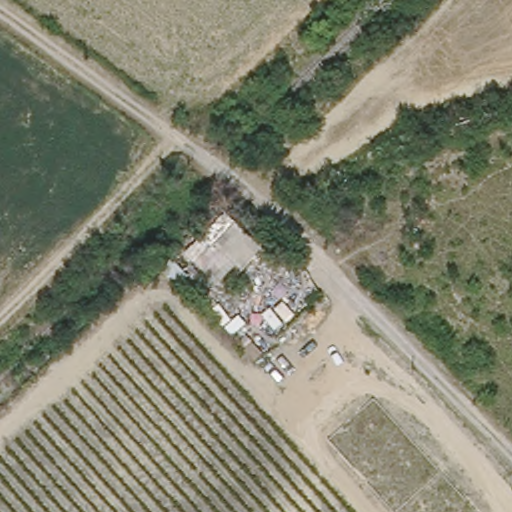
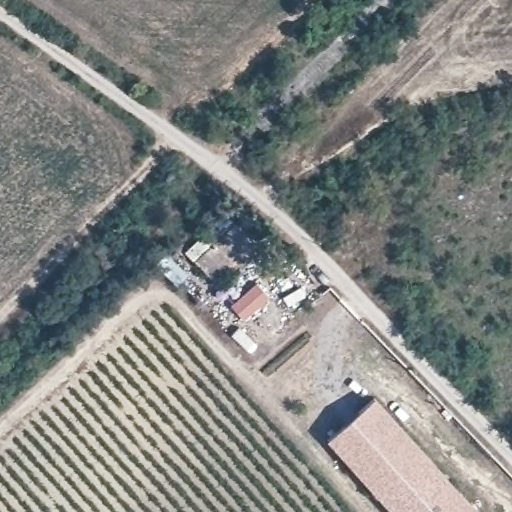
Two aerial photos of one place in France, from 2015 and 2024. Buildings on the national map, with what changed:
unchanged [(250,235),(206,277),(180,252),(226,209),(250,235)]
new [(480,512),(392,512),(328,440),(375,398),(480,512)]

